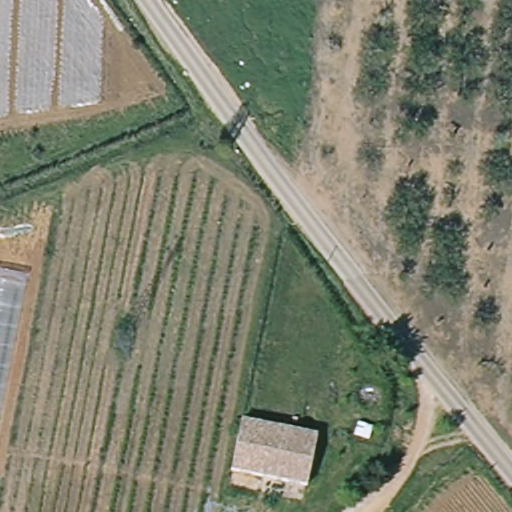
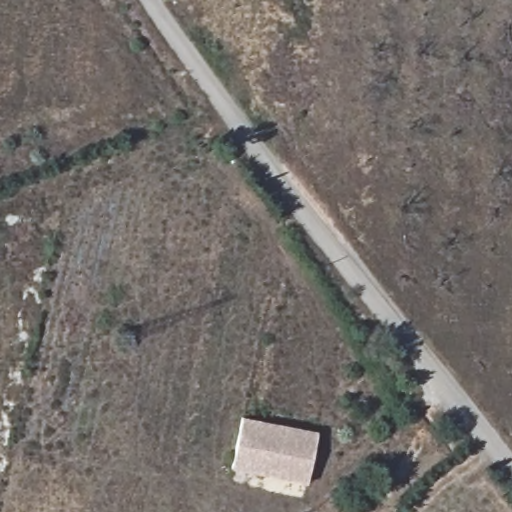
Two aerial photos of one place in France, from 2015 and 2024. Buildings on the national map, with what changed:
new [(0,424),(0,278),(28,283),(0,424)]
unchanged [(244,416),(319,432),(308,485),(231,468),(244,416)]

